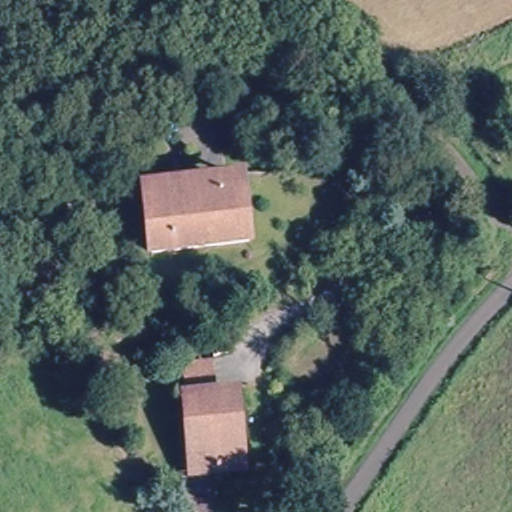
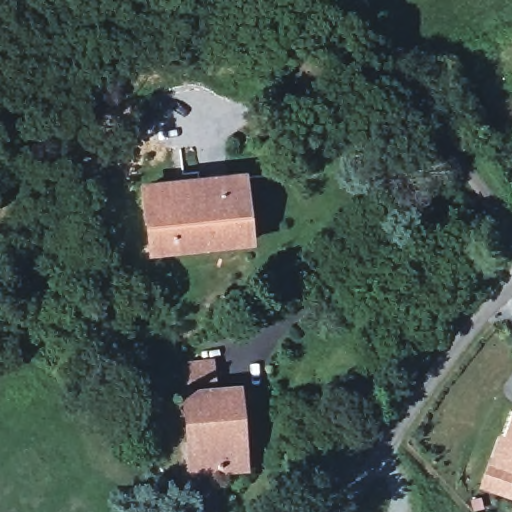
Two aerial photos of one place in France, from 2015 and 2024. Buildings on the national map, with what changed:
unchanged [(151,254),(144,189),(190,184),(240,178),(242,195),(243,195),(249,243),(151,254)]
unchanged [(192,472),(186,397),(183,365),(211,363),(214,394),(236,392),(243,468),(192,472)]
new [(487,464),(497,435),(502,436),(512,410),(512,500),(478,488),(487,464)]

